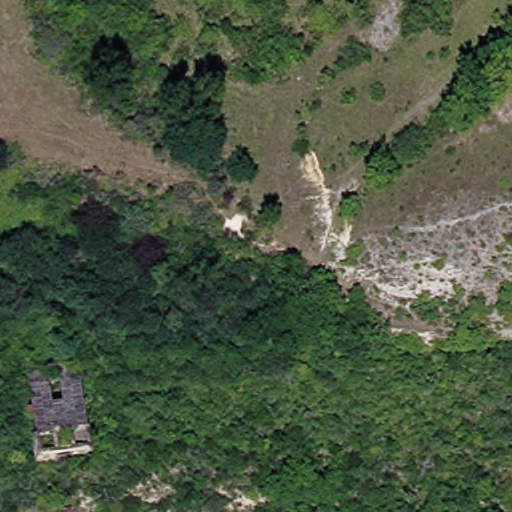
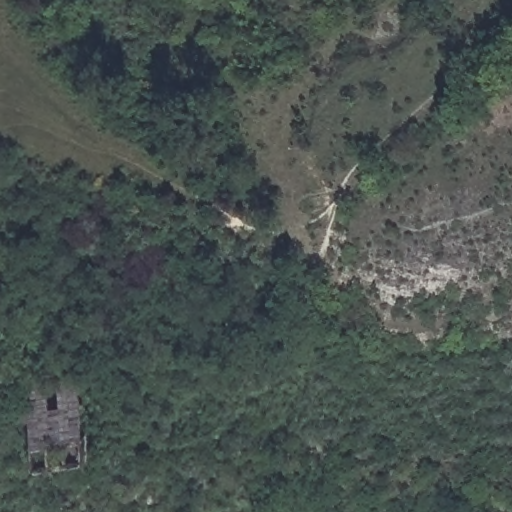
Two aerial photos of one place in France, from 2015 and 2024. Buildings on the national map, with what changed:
unchanged [(91,456),(43,460),(30,346),(80,344),(91,456)]

